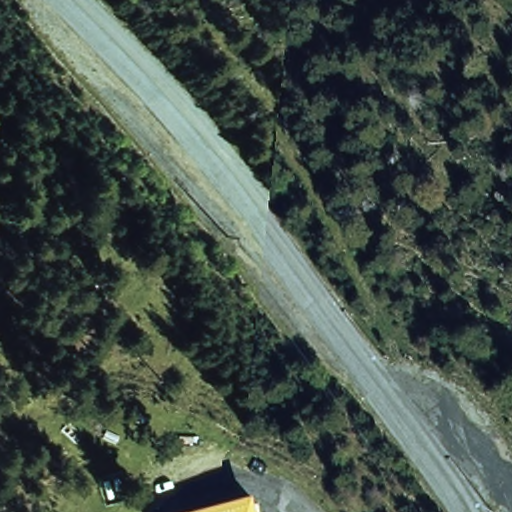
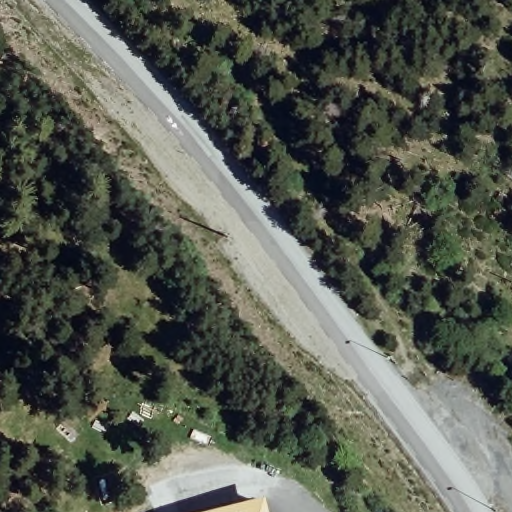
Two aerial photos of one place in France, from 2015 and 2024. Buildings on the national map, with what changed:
unchanged [(268,512),(216,512),(265,499),(268,512)]

